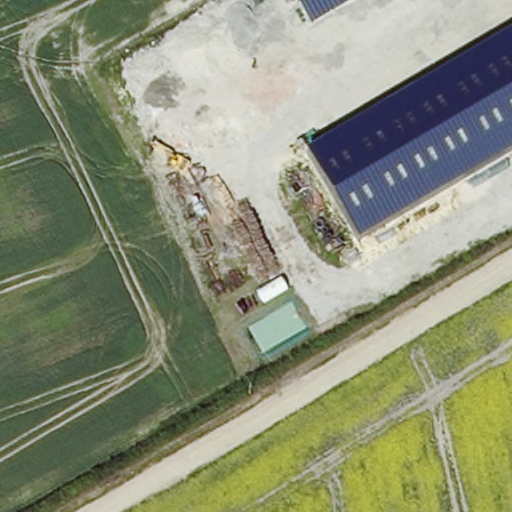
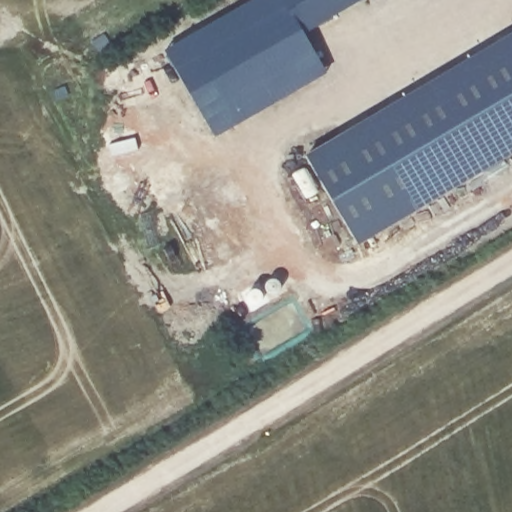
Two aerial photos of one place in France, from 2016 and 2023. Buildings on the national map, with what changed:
new [(166,49),(245,0),(294,0),(311,28),(306,30),(327,74),(216,136),(166,49)]
unchanged [(294,0),(358,0),(311,28),(294,0)]
unchanged [(305,153),(512,32),(512,154),(360,244),(305,153)]

